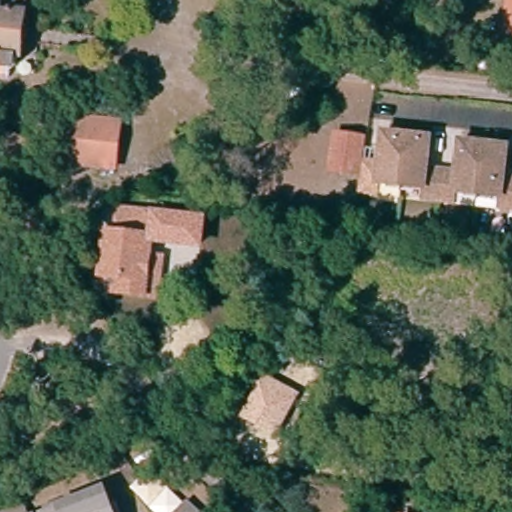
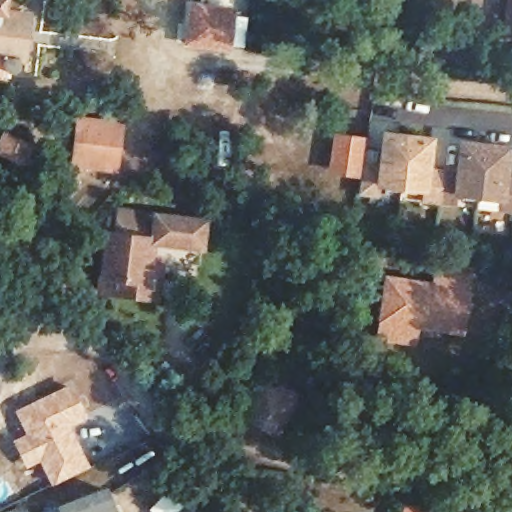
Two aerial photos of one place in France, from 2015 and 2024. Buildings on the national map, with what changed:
new [(187,0),(190,0),(235,7),(234,13),(247,15),(243,49),(232,47),(231,53),(181,47),(187,0)]
unchanged [(18,25),(21,25),(16,71),(12,71),(11,78),(6,82),(0,82),(0,7),(19,9),(18,25)]
unchanged [(107,172),(67,167),(72,123),(112,127),(107,172)]
unchanged [(381,145),(387,138),(425,143),(429,147),(426,175),(456,177),(458,154),(465,147),(501,151),(506,157),(502,184),(512,184),(512,215),(498,214),(500,204),(454,198),(453,207),(422,204),(422,195),(377,190),(376,200),(362,197),(365,167),(378,169),(381,145)]
unchanged [(360,179),(332,176),(337,140),(362,144),(360,179)]
unchanged [(151,297),(140,296),(95,290),(101,234),(110,235),(112,212),(147,216),(147,214),(197,220),(195,247),(147,242),(145,256),(155,258),(151,297)]
unchanged [(292,258),(272,256),(265,256),(267,233),(274,234),(293,236),(292,258)]
unchanged [(385,296),(432,302),(435,286),(466,290),(457,365),(412,359),(410,377),(375,372),(377,355),(385,296)]
unchanged [(301,392),(277,437),(237,417),(260,370),(301,392)]
new [(52,483),(40,460),(25,467),(12,440),(27,432),(15,409),(71,382),(87,417),(70,425),(90,466),(52,483)]
unchanged [(110,512),(58,512),(102,494),(110,512)]
unchanged [(176,512),(182,506),(189,512),(176,512)]
unchanged [(57,512),(49,512),(56,510),(57,512)]
unchanged [(23,512),(20,512),(22,511),(23,512)]

